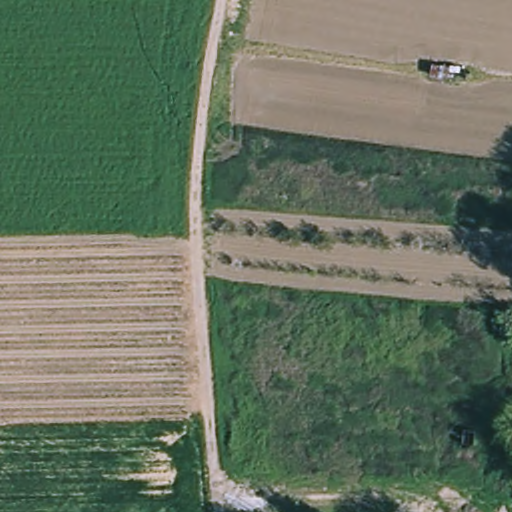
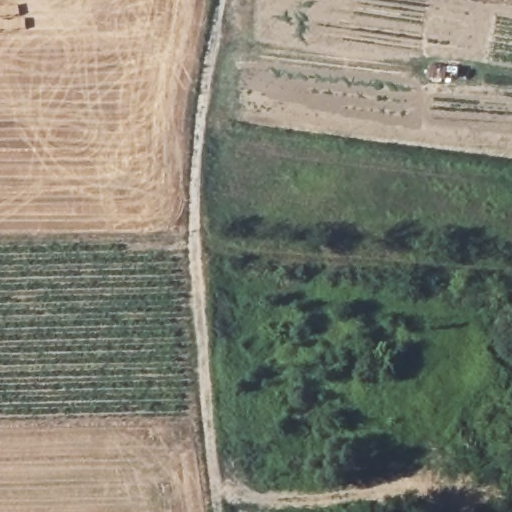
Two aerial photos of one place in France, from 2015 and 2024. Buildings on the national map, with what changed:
unchanged [(430,62),(450,67),(447,81),(429,78),(430,62)]
unchanged [(461,427),(477,428),(474,450),(459,450),(461,427)]

